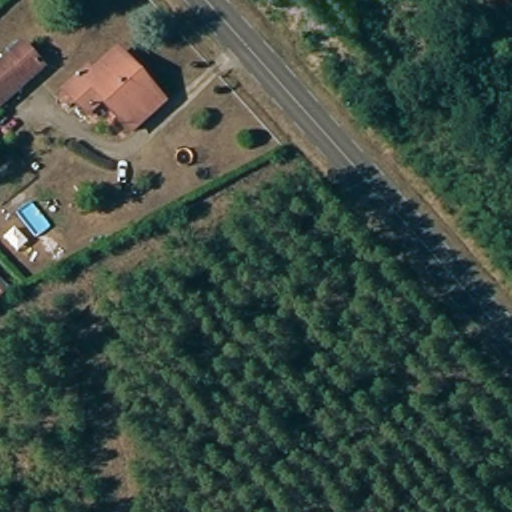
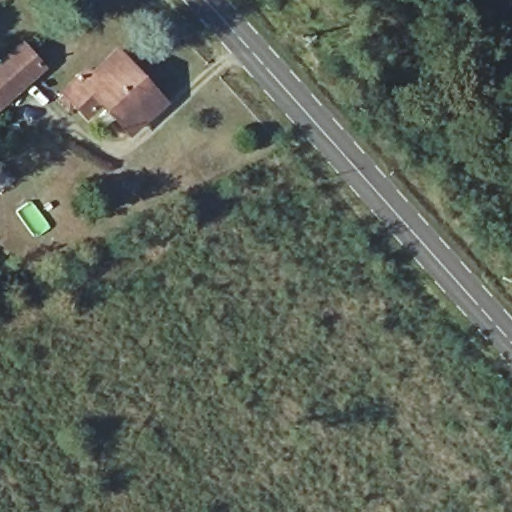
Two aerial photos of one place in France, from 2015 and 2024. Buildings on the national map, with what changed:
unchanged [(48,64),(0,102),(0,59),(26,38),(48,64)]
unchanged [(56,110),(76,96),(70,87),(98,66),(106,77),(131,57),(168,102),(133,133),(108,102),(71,131),(56,110)]

